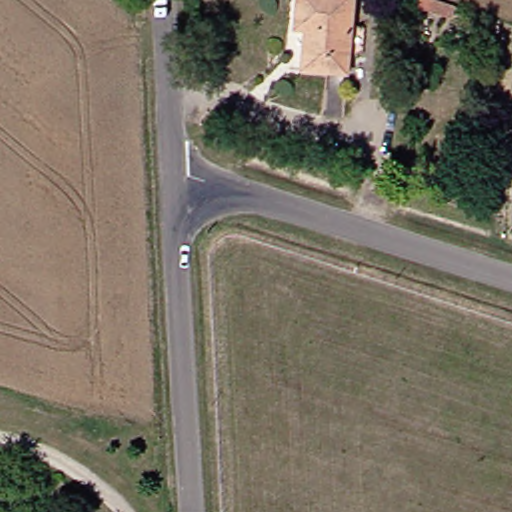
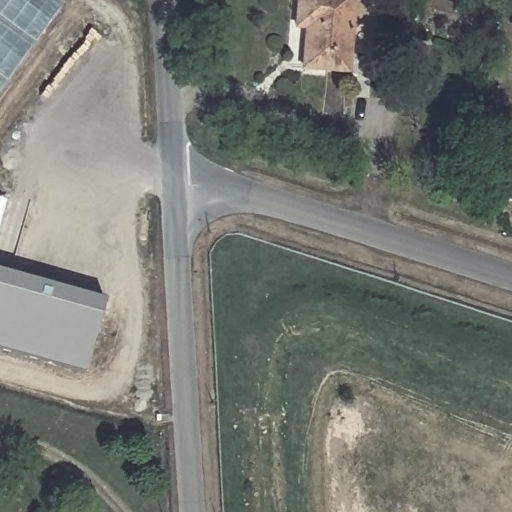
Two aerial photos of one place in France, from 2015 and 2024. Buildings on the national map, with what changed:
new [(0,92),(0,0),(58,0),(65,5),(0,92)]
unchanged [(300,28),(290,26),(293,0),(350,0),(338,81),(294,73),(300,28)]
new [(99,315),(83,372),(0,349),(0,271),(99,299),(95,314),(99,315)]

